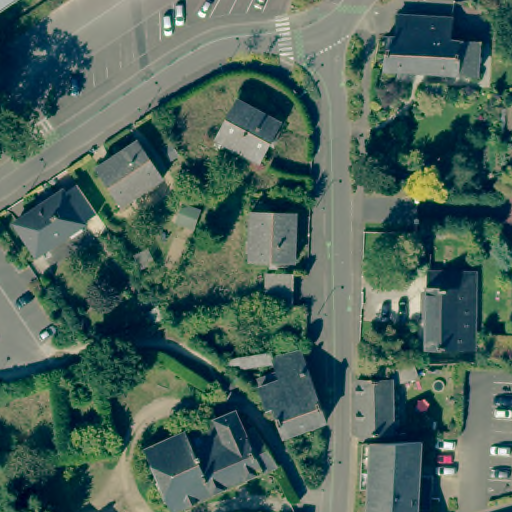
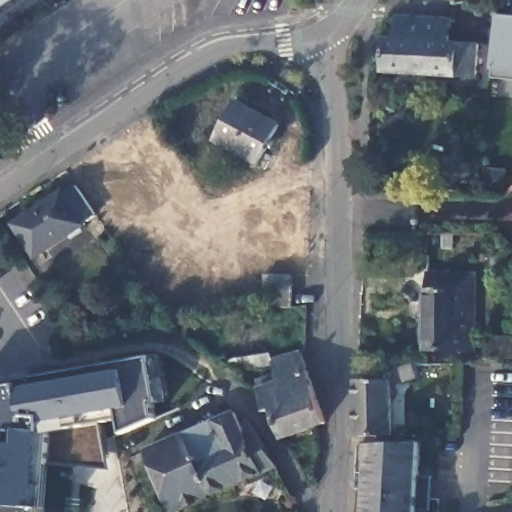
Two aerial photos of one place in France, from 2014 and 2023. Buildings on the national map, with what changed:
unchanged [(0,0),(17,0),(0,11),(0,0)]
new [(490,76),(492,69),(498,13),(512,15),(512,79),(490,76)]
unchanged [(385,71),(387,37),(396,38),(399,15),(453,20),(452,41),(479,44),(477,77),(385,71)]
unchanged [(259,165),(217,141),(239,101),(280,125),(259,165)]
unchanged [(164,182),(122,207),(98,170),(139,143),(164,182)]
unchanged [(91,221),(42,254),(20,220),(69,189),(91,221)]
unchanged [(294,265),(250,264),(252,216),(297,216),(294,265)]
unchanged [(474,351),(425,351),(427,291),(429,291),(429,273),(477,275),(474,351)]
unchanged [(267,276),(294,277),(293,307),(265,306),(267,276)]
unchanged [(487,357),(489,335),(512,337),(512,358),(487,357)]
unchanged [(282,436),(274,411),(269,412),(259,383),(273,379),(272,375),(278,374),(274,360),(302,352),(307,366),(328,422),(323,425),(284,438),(282,436)]
new [(150,402),(153,419),(122,430),(116,410),(99,413),(109,469),(39,461),(35,507),(42,508),(42,512),(0,512),(0,388),(19,383),(149,356),(156,400),(150,402)]
unchanged [(359,380),(390,380),(390,373),(414,365),(417,377),(392,385),(394,434),(394,436),(358,437),(357,396),(357,380),(359,380)]
unchanged [(250,441),(262,436),(281,467),(174,512),(172,512),(145,451),(238,413),(250,441)]
unchanged [(369,445),(421,442),(419,476),(433,476),(432,499),(431,511),(418,511),(417,512),(366,512),(369,445)]

